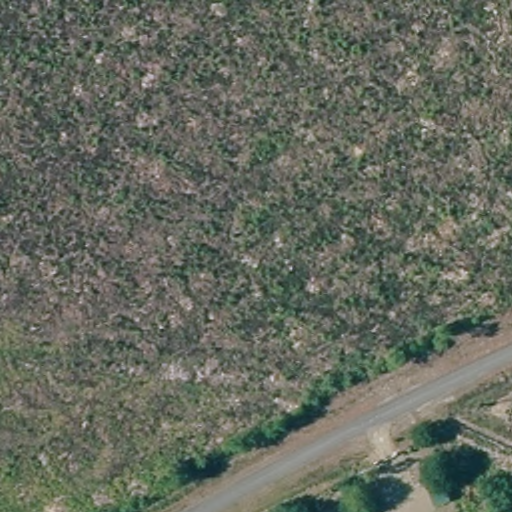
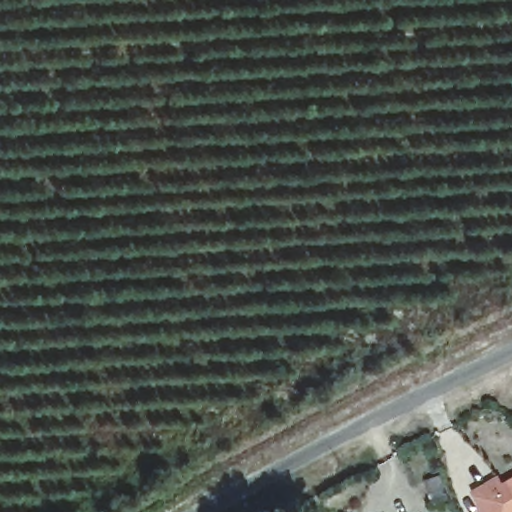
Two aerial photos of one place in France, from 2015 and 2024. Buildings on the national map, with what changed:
new [(506,485),(512,481),(512,512),(484,512),(473,491),(502,476),(506,485)]

